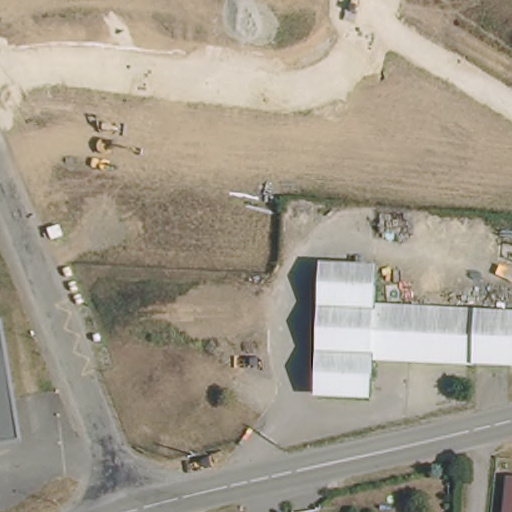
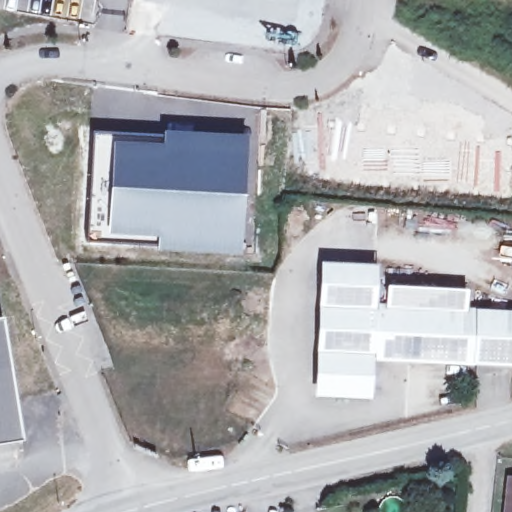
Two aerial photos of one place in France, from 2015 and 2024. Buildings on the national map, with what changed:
new [(165,143),(115,141),(111,232),(160,235),(160,243),(85,240),(91,130),(166,133),(165,143)]
new [(165,143),(166,133),(240,137),(235,247),(160,243),(160,235),(111,232),(115,141),(165,143)]
unchanged [(366,355),(366,379),(314,377),(319,281),(349,283),(370,284),(370,305),(512,312),(512,361),(366,355)]
unchanged [(22,442),(0,446),(0,319),(3,319),(22,442)]
unchanged [(512,477),(512,512),(504,512),(509,477),(512,477)]

